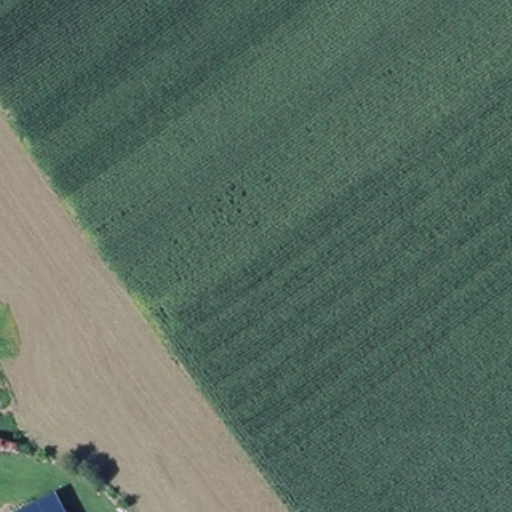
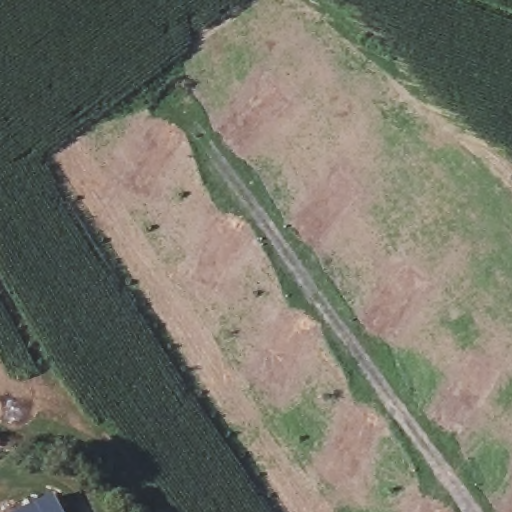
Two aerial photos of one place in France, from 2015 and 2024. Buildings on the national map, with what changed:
unchanged [(55,496),(63,512),(25,512),(55,496)]

